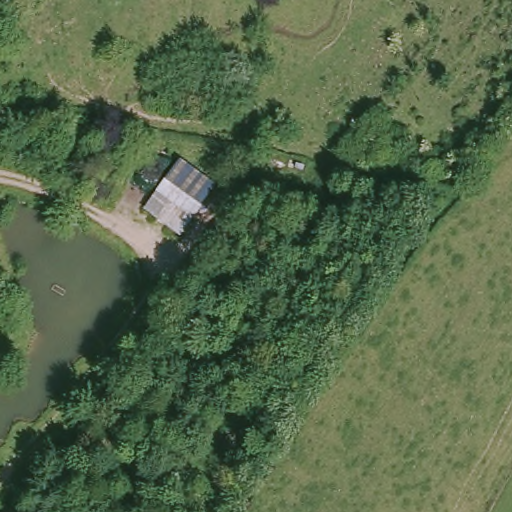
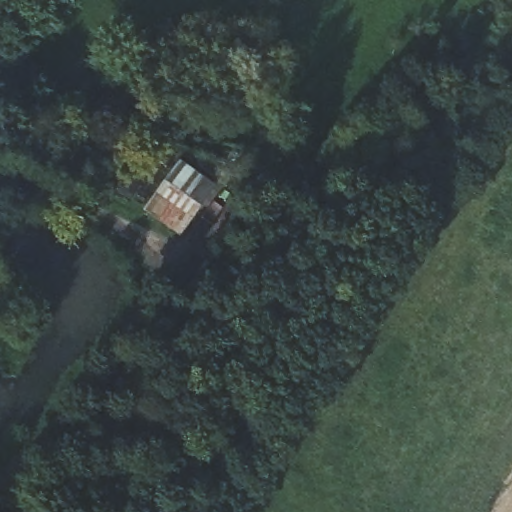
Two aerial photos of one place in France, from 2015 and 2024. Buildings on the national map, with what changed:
unchanged [(124,202),(153,157),(179,161),(213,187),(181,236),(143,211),(124,202)]

